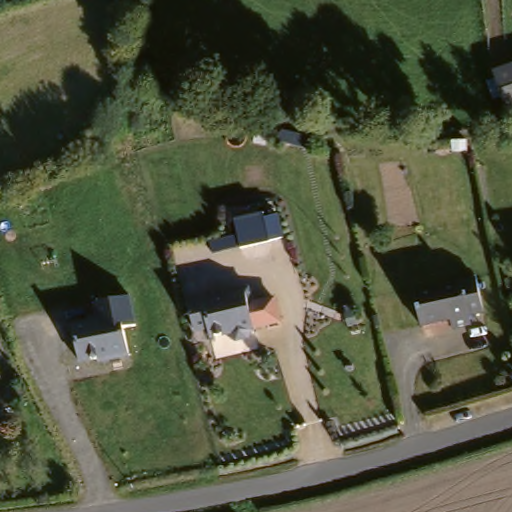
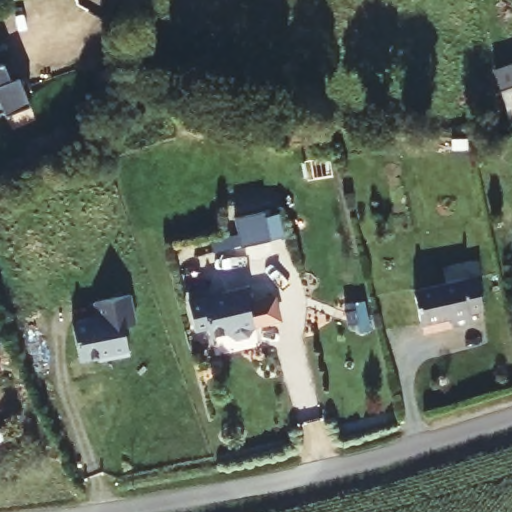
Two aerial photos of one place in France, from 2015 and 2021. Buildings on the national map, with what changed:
new [(12,81),(18,79),(29,107),(6,117),(4,112),(0,114),(0,65),(4,64),(12,81)]
unchanged [(489,71),(512,66),(512,124),(503,126),(489,71)]
unchanged [(272,199),(276,230),(246,232),(242,202),(272,199)]
unchanged [(201,286),(219,283),(219,281),(252,277),(254,296),(249,296),(252,317),(250,318),(244,327),(234,328),(227,323),(227,321),(208,322),(207,312),(204,312),(193,313),(189,287),(201,286)]
unchanged [(476,317),(466,319),(466,327),(449,331),(446,325),(416,327),(409,293),(473,283),(476,317)]
unchanged [(93,318),(91,301),(129,295),(134,323),(124,327),(128,353),(79,361),(73,322),(93,318)]

